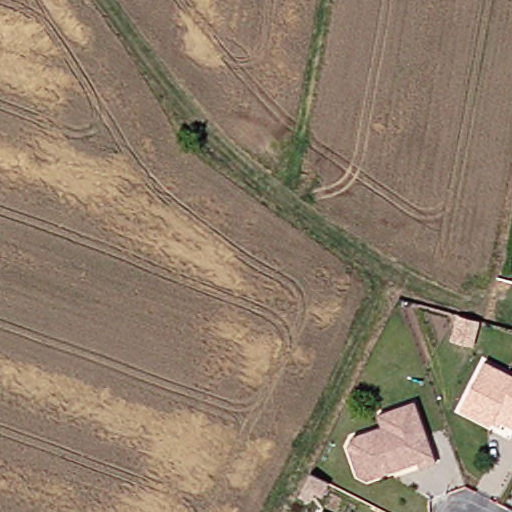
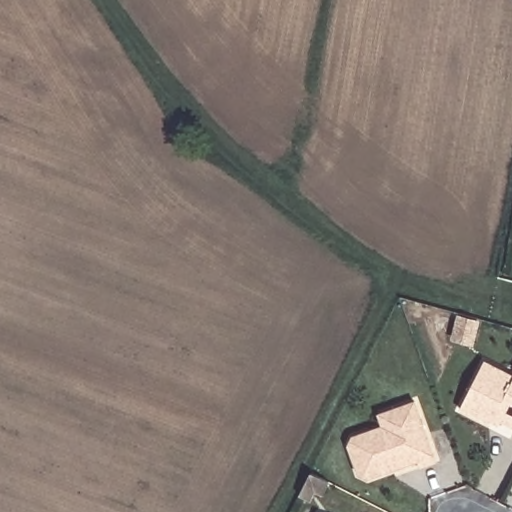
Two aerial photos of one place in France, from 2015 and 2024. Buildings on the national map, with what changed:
unchanged [(498,417),(494,426),(463,410),(488,362),(512,374),(512,425),(498,417)]
unchanged [(442,460),(427,466),(425,460),(375,480),(366,476),(353,447),(357,438),(387,426),(382,415),(398,408),(418,400),(442,460)]
unchanged [(326,501),(318,497),(313,506),(301,500),(301,499),(308,486),(312,477),(313,476),(333,486),(326,501)]

